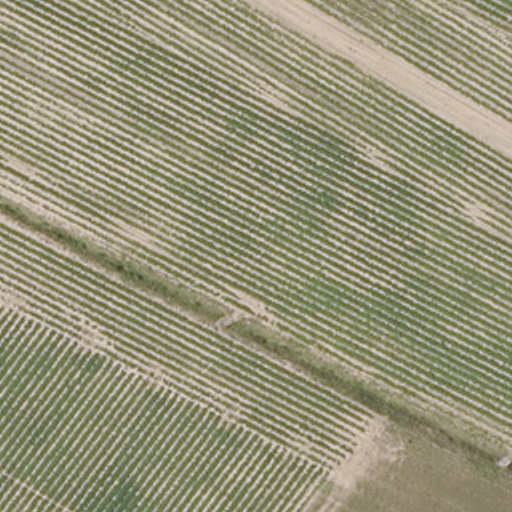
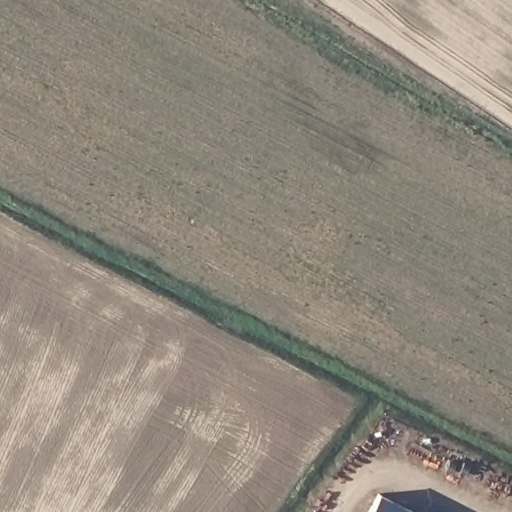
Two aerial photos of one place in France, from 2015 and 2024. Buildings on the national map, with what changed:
new [(377,493),(414,512),(367,512),(377,493)]

